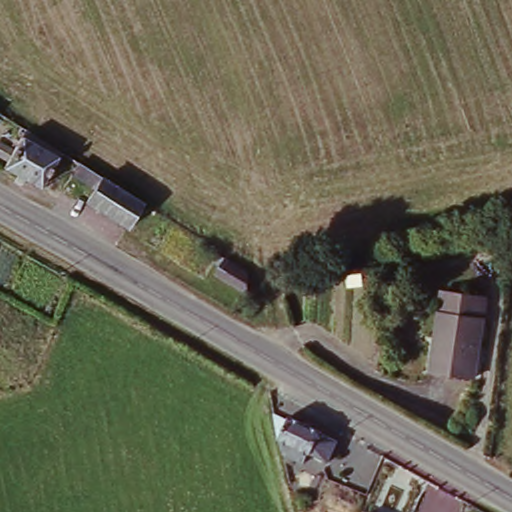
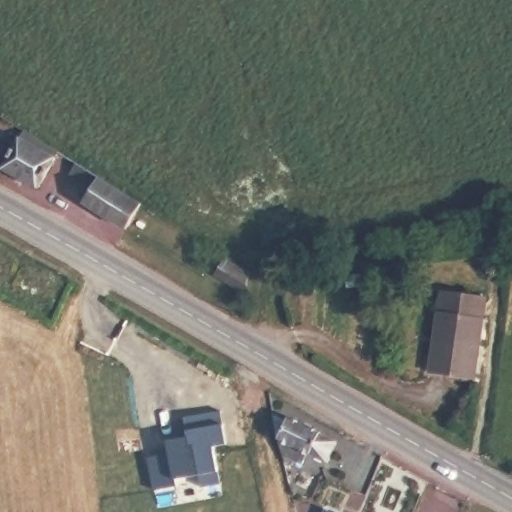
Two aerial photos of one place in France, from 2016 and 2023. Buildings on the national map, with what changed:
unchanged [(4,177),(7,171),(0,167),(0,150),(15,157),(25,137),(60,160),(39,196),(4,177)]
unchanged [(141,206),(126,233),(88,207),(95,193),(71,180),(78,166),(141,206)]
unchanged [(255,271),(244,295),(214,281),(225,257),(255,271)]
unchanged [(432,370),(442,313),(446,293),(488,300),(485,318),(475,377),(432,370)]
new [(150,457),(170,453),(168,440),(190,436),(185,418),(220,411),(227,442),(215,446),(221,481),(202,486),(200,473),(175,477),(176,484),(154,488),(150,457)]
unchanged [(291,417),(323,431),(322,432),(339,440),(330,461),(313,453),(310,452),(305,463),(296,460),(295,464),(287,461),(281,438),(280,438),(291,417)]
new [(336,512),(325,512),(326,508),(336,512)]

